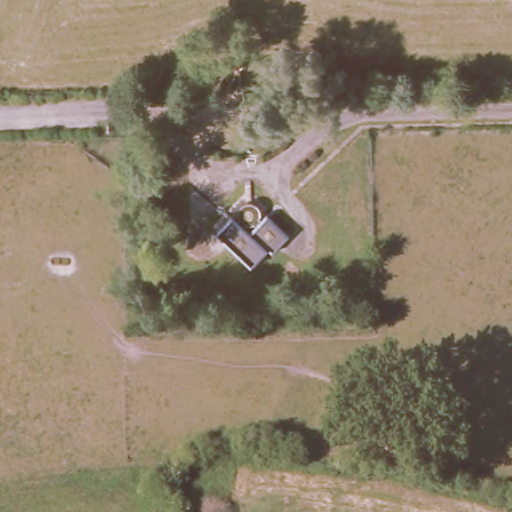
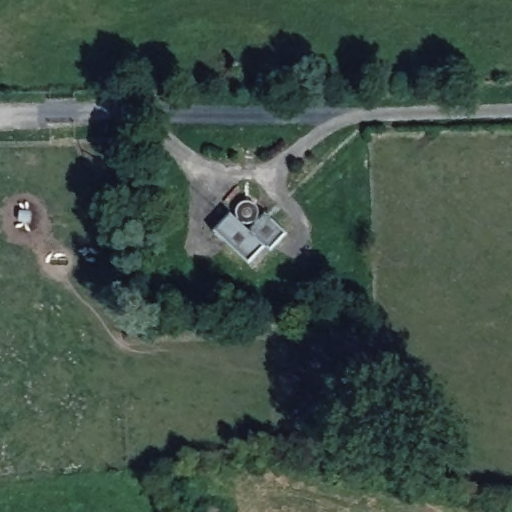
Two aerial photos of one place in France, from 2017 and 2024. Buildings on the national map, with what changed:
unchanged [(231,216),(232,212),(232,205),(239,199),(245,199),(252,200),(256,209),(256,217),(265,212),(285,232),(270,252),(262,245),(250,261),(215,228),(228,212),(231,216)]

